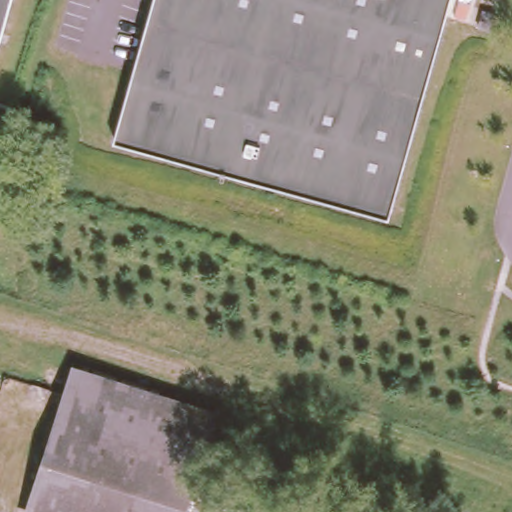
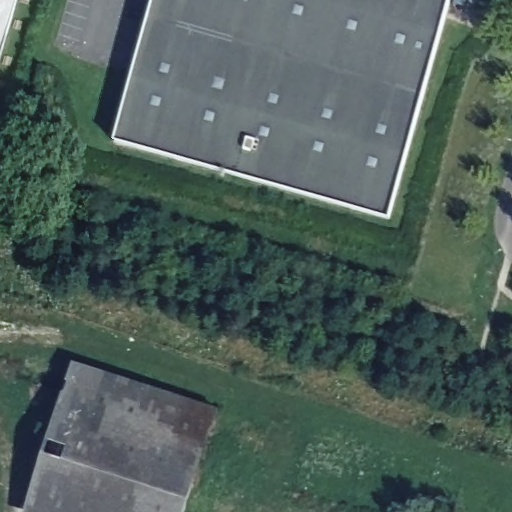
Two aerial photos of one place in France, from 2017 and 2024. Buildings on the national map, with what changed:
unchanged [(0,0),(6,0),(0,20),(0,0)]
unchanged [(387,217),(113,140),(152,0),(448,0),(387,217)]
unchanged [(493,12),(487,31),(477,28),(483,10),(493,12)]
unchanged [(203,457),(201,456),(58,405),(72,360),(221,406),(204,457),(203,457)]
unchanged [(20,512),(56,404),(58,405),(201,456),(203,457),(183,512),(20,512)]

